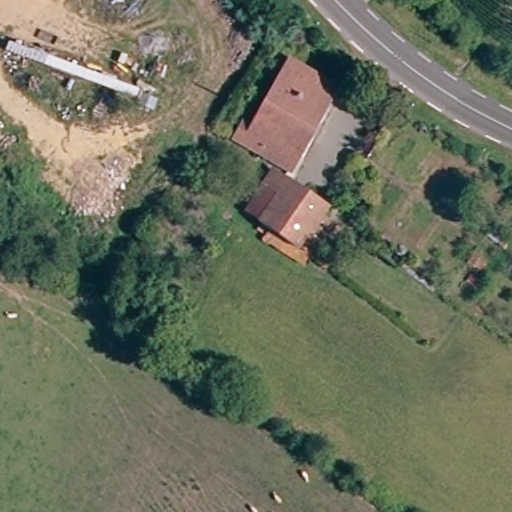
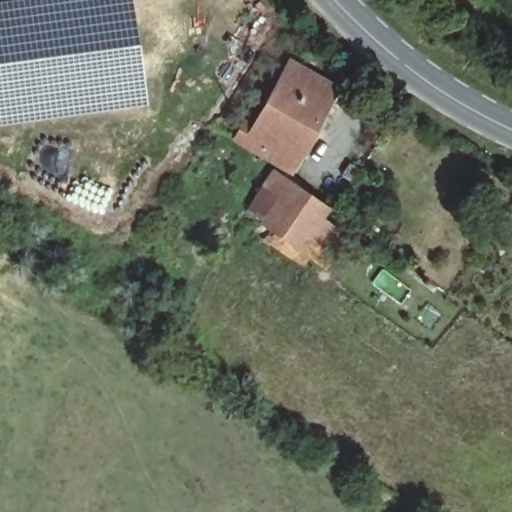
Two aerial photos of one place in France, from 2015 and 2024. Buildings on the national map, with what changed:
new [(130,0),(145,103),(0,123),(0,1),(7,0),(130,0)]
unchanged [(235,139),(240,126),(246,131),(285,55),(337,85),(289,171),(235,139)]
unchanged [(268,168),(328,208),(322,216),(348,234),(326,269),(308,256),(300,266),(268,248),(278,238),(238,211),(268,168)]

